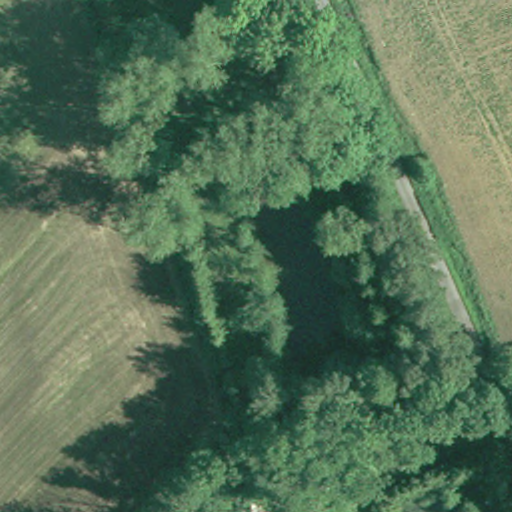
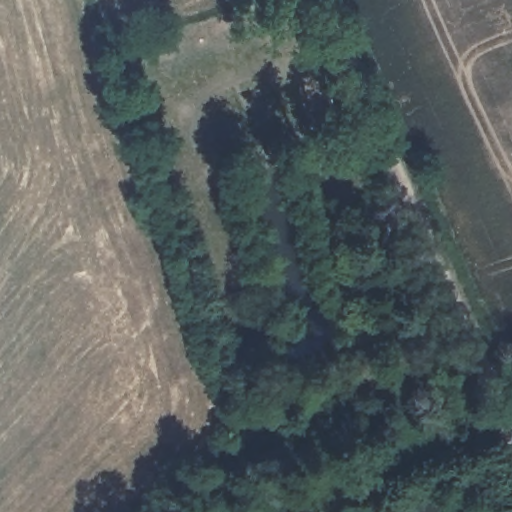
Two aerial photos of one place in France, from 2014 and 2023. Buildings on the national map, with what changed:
[]

